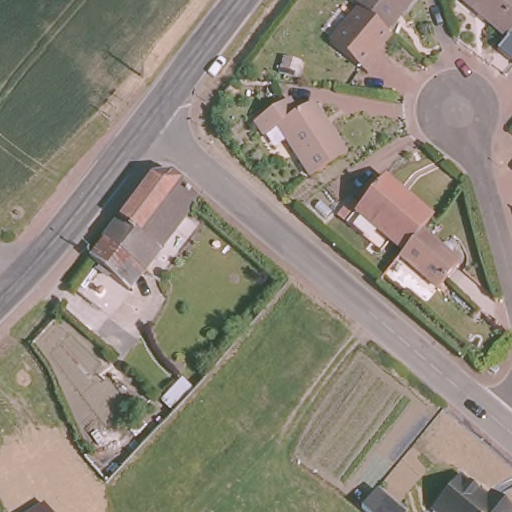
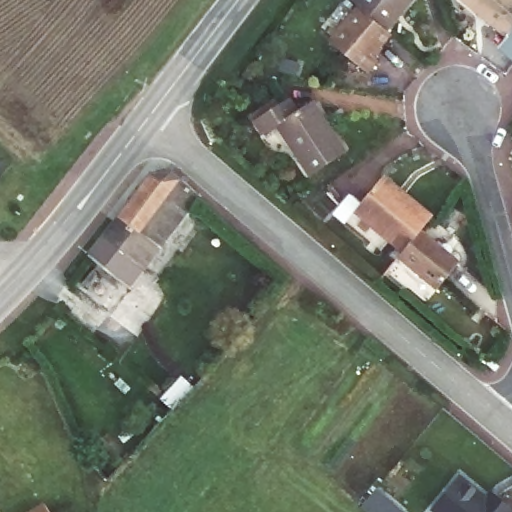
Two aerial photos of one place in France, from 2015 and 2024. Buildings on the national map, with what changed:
unchanged [(388,20),(391,22),(371,45),(375,50),(365,62),(329,27),(352,0),(366,0),(388,20)]
unchanged [(388,20),(366,0),(405,0),(388,20)]
unchanged [(497,40),(507,29),(474,0),(512,0),(512,53),(497,40)]
unchanged [(307,170),(274,119),(263,125),(255,114),(286,93),(296,106),(311,97),(342,147),(307,170)]
unchanged [(89,257),(118,217),(138,191),(151,174),(168,171),(179,181),(197,196),(184,214),(132,289),(89,257)]
unchanged [(359,203),(387,171),(434,212),(423,225),(406,245),(359,203)]
unchanged [(406,245),(423,225),(461,259),(439,282),(402,250),(406,245)]
unchanged [(183,400),(171,390),(190,367),(203,377),(183,400)]
unchanged [(430,512),(461,472),(490,493),(494,490),(512,503),(512,512),(430,512)]
unchanged [(45,512),(32,512),(41,506),(45,512)]

